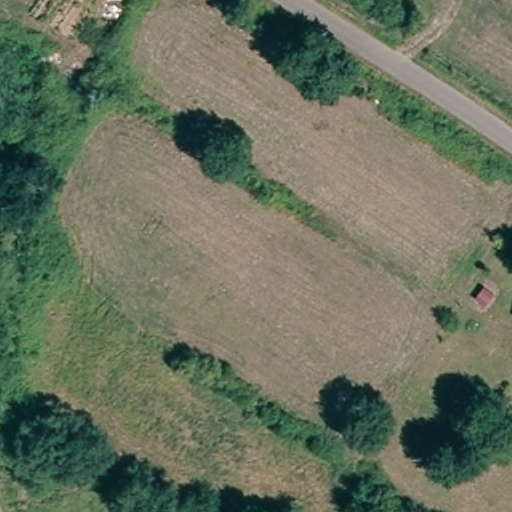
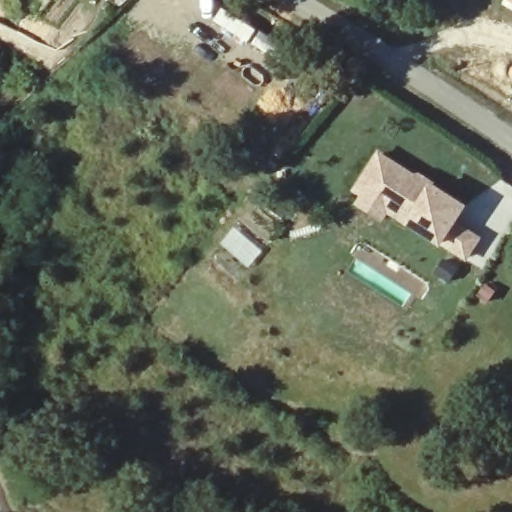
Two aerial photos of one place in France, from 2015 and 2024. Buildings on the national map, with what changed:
new [(503,0),(512,0),(512,6),(503,0)]
new [(463,262),(438,245),(437,247),(405,227),(385,215),(379,223),(355,208),(361,200),(353,195),(356,191),(376,159),(414,183),(416,179),(430,187),(428,191),(460,211),(450,227),(475,243),(463,262)]

